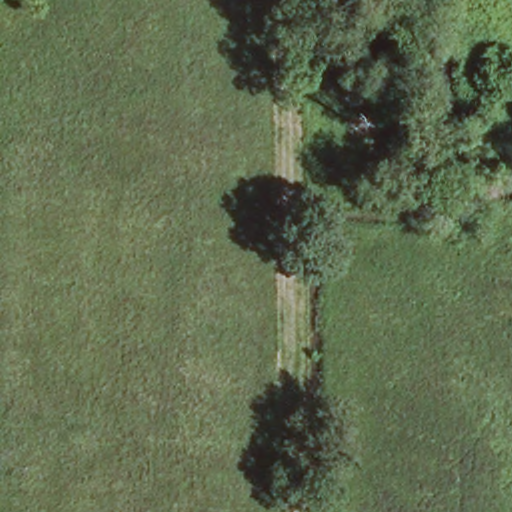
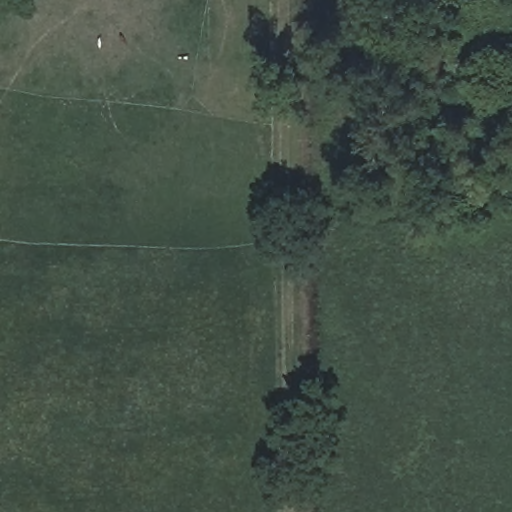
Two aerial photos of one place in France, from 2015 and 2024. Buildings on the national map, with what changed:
[]

